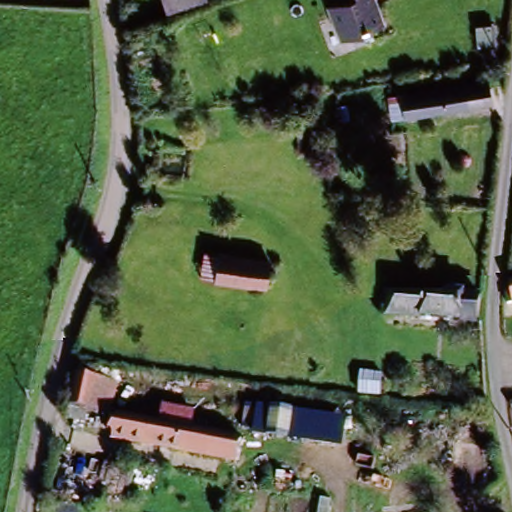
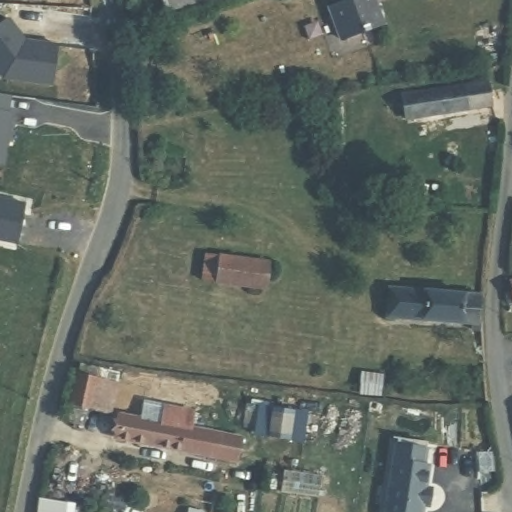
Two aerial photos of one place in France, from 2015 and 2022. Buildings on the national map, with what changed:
new [(208,2),(166,15),(161,0),(208,0),(208,2)]
unchanged [(322,7),(334,3),(333,0),(374,0),(383,29),(337,42),(322,7)]
new [(0,75),(0,24),(9,18),(25,39),(57,44),(52,86),(3,79),(0,75)]
unchanged [(402,90),(463,80),(486,76),(490,95),(466,99),(406,108),(402,90)]
new [(5,164),(0,163),(0,95),(10,96),(8,113),(11,113),(5,164)]
new [(0,197),(24,202),(16,245),(0,241),(0,197)]
unchanged [(267,286),(216,279),(191,276),(195,249),(220,253),(271,260),(267,286)]
unchanged [(508,277),(512,276),(512,297),(503,299),(501,288),(510,286),(508,277)]
unchanged [(477,323),(460,322),(387,317),(388,287),(479,292),(477,323)]
new [(81,364),(100,367),(98,378),(117,382),(111,414),(88,409),(95,383),(78,379),(81,364)]
unchanged [(78,379),(95,383),(86,421),(68,418),(78,379)]
unchanged [(293,406),(346,413),(342,446),(290,439),(265,435),(252,434),(253,426),(241,424),(244,400),(256,402),(269,404),(293,406)]
unchanged [(118,438),(118,429),(121,410),(203,425),(239,431),(235,450),(234,459),(118,438)]
new [(432,487),(430,508),(424,507),(423,512),(382,512),(393,443),(428,448),(426,464),(430,465),(427,487),(432,487)]

